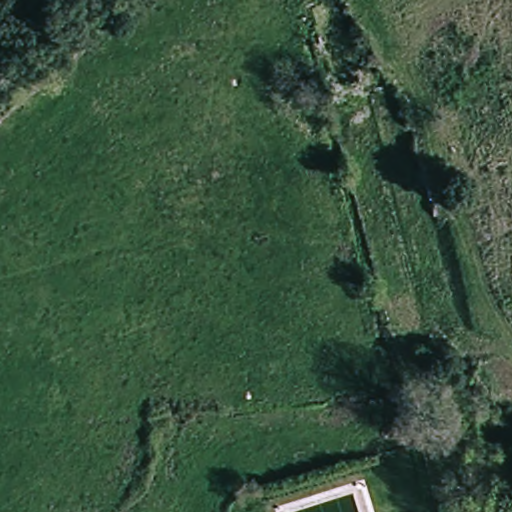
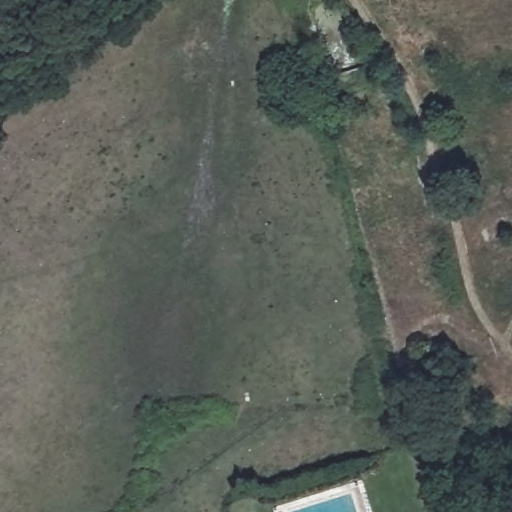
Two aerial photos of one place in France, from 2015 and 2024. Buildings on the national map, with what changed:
[]

